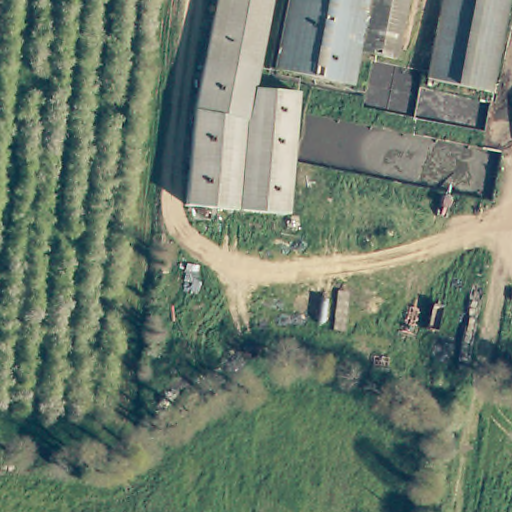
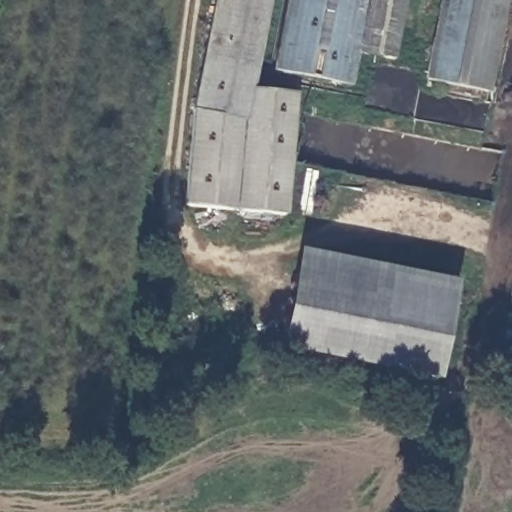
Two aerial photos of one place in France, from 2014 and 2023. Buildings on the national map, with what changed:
unchanged [(197,117),(218,0),(271,0),(255,93),(298,96),(291,218),(191,212),(197,117)]
unchanged [(395,62),(358,55),(352,89),(275,75),(289,0),(406,0),(395,62)]
unchanged [(488,93),(428,81),(444,0),(507,0),(488,93)]
new [(460,280),(441,380),(282,347),(301,249),(460,280)]

